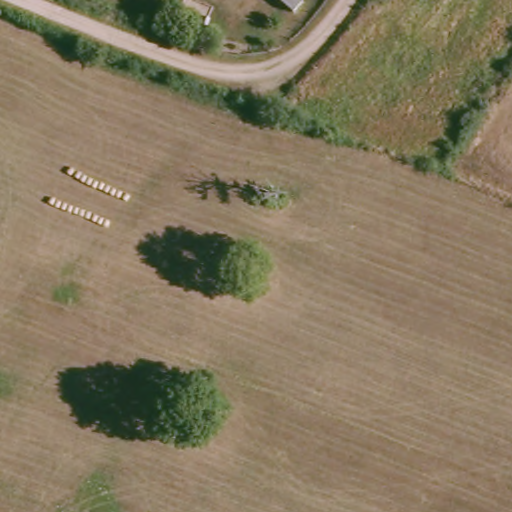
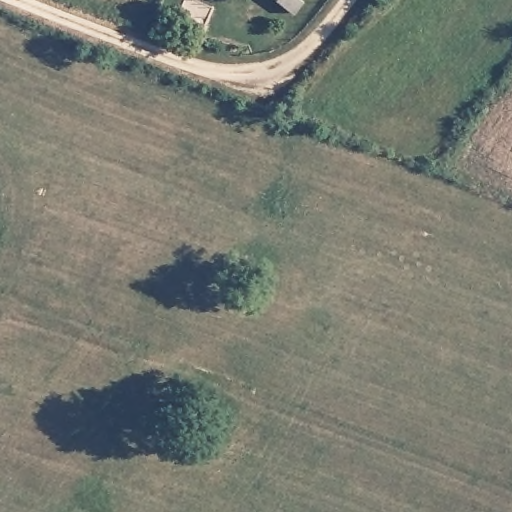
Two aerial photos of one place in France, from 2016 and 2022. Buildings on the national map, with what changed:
unchanged [(293,2),(290,0),(294,0),(293,2)]

